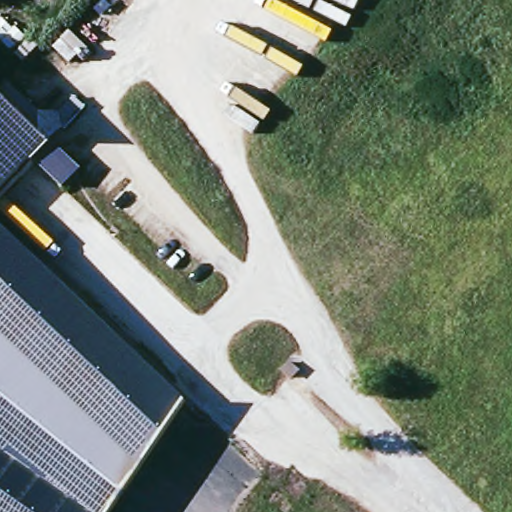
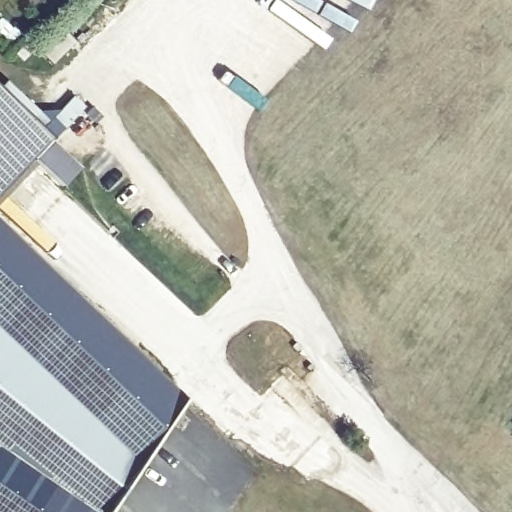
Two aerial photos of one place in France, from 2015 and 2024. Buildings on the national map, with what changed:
unchanged [(0,143),(0,104),(18,121),(0,143)]
unchanged [(54,154),(0,212),(0,143),(18,121),(54,154)]
unchanged [(199,401),(183,424),(115,512),(0,512),(0,251),(139,356),(199,401)]

